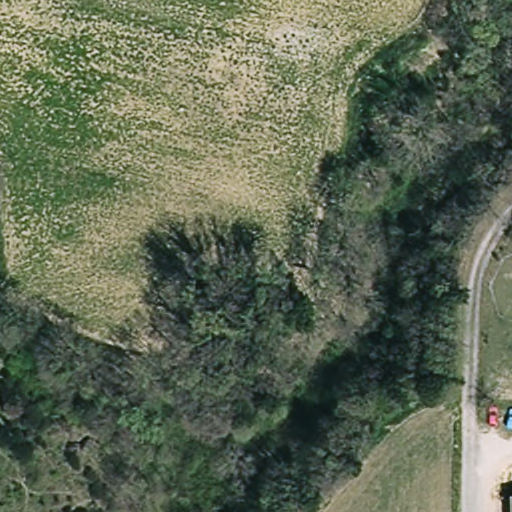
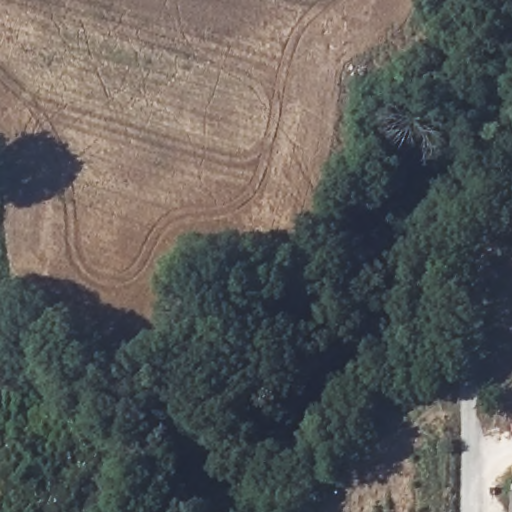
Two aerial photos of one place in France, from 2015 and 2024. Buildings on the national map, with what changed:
unchanged [(512,497),(512,512),(508,512),(508,497),(512,497)]

